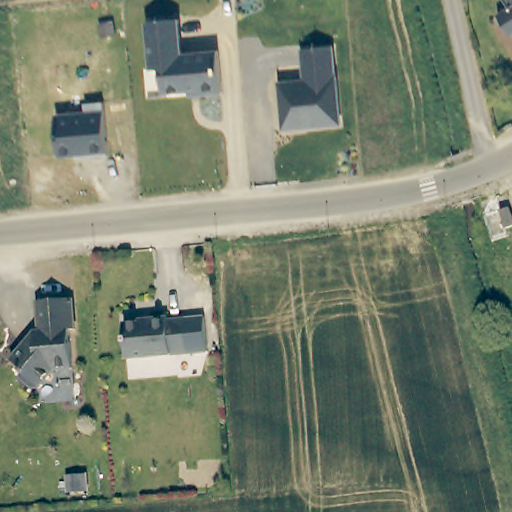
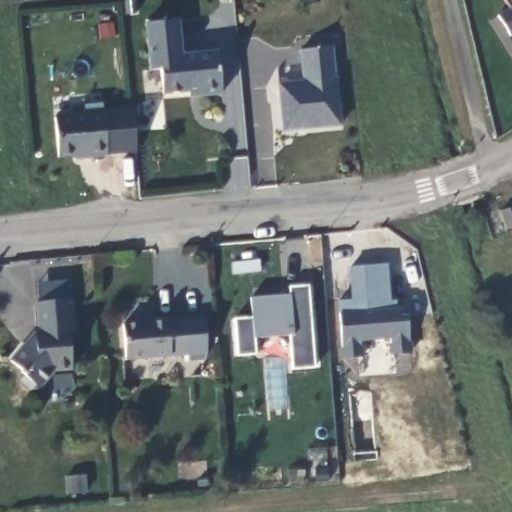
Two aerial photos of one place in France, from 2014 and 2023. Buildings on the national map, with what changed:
unchanged [(505,0),(512,0),(512,7),(510,8),(505,0)]
unchanged [(498,15),(510,8),(512,7),(512,35),(511,36),(498,15)]
unchanged [(190,97),(190,92),(160,94),(156,69),(148,70),(144,22),(178,20),(181,52),(217,50),(222,93),(190,97)]
unchanged [(281,84),(307,81),(304,50),(335,47),(338,78),(339,78),(344,125),(310,129),(310,126),(286,129),(281,84)]
unchanged [(57,157),(53,116),(102,112),(105,154),(57,157)]
unchanged [(512,227),(506,230),(500,212),(509,209),(512,216),(512,227)]
new [(390,300),(397,299),(397,307),(402,307),(403,316),(411,315),(412,353),(391,355),(390,338),(364,341),(365,357),(340,359),(336,299),(351,298),(348,266),(388,262),(390,300)]
new [(293,371),(290,334),(255,338),(256,355),(237,357),(233,317),(253,316),(251,297),(289,294),(288,286),(308,284),(315,368),(293,371)]
unchanged [(72,296),(75,326),(68,327),(72,366),(47,368),(47,373),(38,386),(29,387),(16,376),(16,372),(20,372),(8,362),(7,357),(25,336),(31,328),(39,327),(35,300),(72,296)]
unchanged [(122,322),(148,318),(148,315),(166,313),(166,317),(183,315),(187,351),(124,357),(122,322)]
unchanged [(189,362),(187,351),(184,318),(204,317),(205,361),(189,362)]

